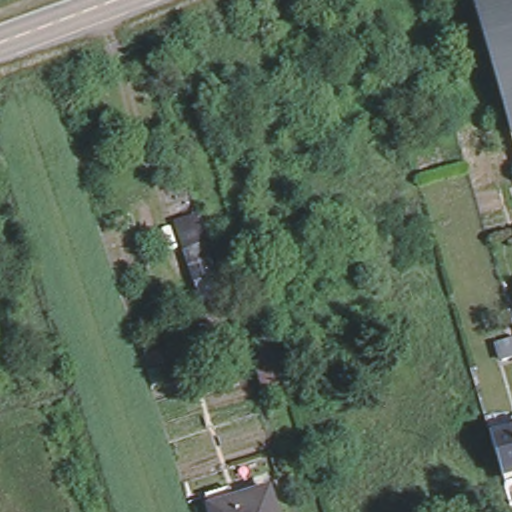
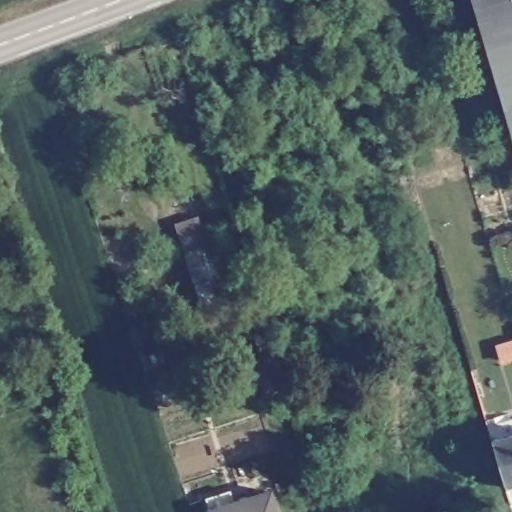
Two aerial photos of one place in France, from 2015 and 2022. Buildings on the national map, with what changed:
unchanged [(512,140),(509,141),(467,0),(512,0),(512,140)]
unchanged [(512,151),(509,141),(512,140),(512,151)]
unchanged [(215,282),(190,290),(170,229),(194,221),(215,282)]
unchanged [(512,359),(502,362),(497,345),(512,340),(512,359)]
unchanged [(512,487),(506,488),(492,442),(512,436),(512,487)]
unchanged [(231,508),(268,497),(273,512),(209,512),(206,504),(227,497),(231,508)]

